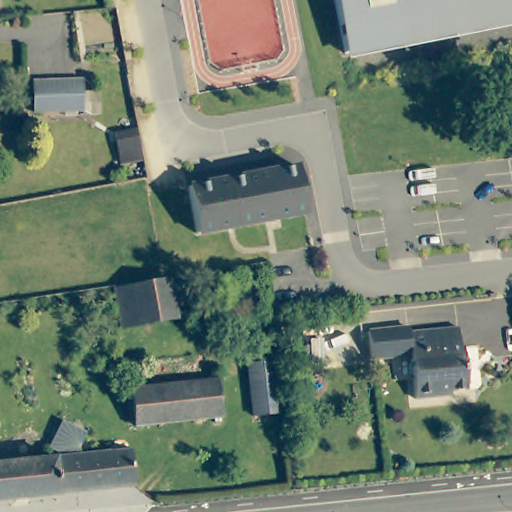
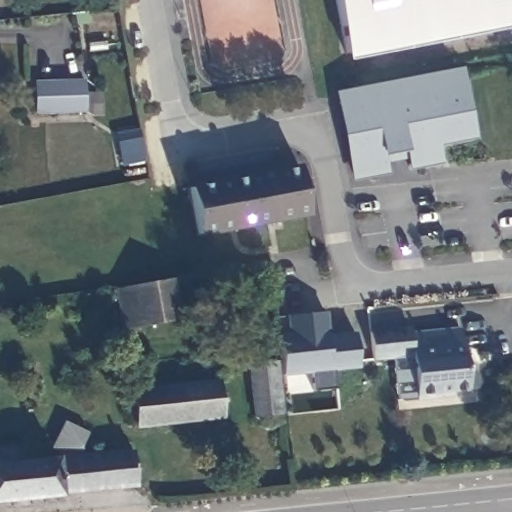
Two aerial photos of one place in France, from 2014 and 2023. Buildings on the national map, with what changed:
unchanged [(410,50),(351,62),(338,0),(512,0),(512,31),(410,50)]
new [(440,145),(444,164),(411,170),(408,160),(388,164),(389,175),(351,181),(335,92),(462,67),(476,137),(440,145)]
unchanged [(74,76),(82,75),(84,110),(81,110),(34,112),(33,105),(32,77),(74,76)]
unchanged [(304,215),(195,234),(187,187),(297,167),(304,215)]
unchanged [(177,325),(121,331),(115,291),(173,285),(177,325)]
unchanged [(437,400),(437,398),(416,400),(412,356),(372,360),(369,332),(409,328),(409,333),(459,328),(461,348),(464,348),(468,390),(453,391),(454,399),(437,400)]
unchanged [(283,407),(264,409),(257,410),(252,358),(278,355),(283,407)]
unchanged [(219,418),(135,425),(133,388),(135,387),(216,380),(219,418)]
unchanged [(54,452),(47,448),(54,436),(55,432),(61,422),(68,425),(84,434),(77,448),(78,457),(131,453),(134,488),(57,493),(58,500),(0,504),(0,462),(55,458),(54,452)]

